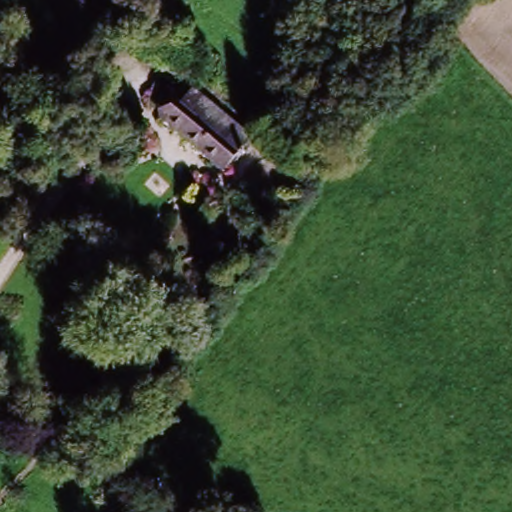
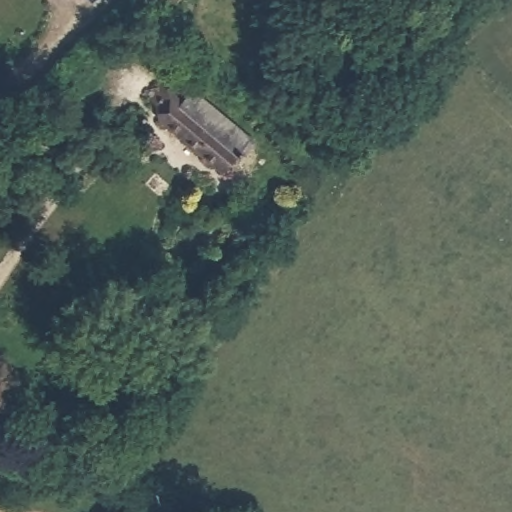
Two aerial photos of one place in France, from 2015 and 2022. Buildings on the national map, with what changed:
unchanged [(91,0),(99,0),(95,4),(91,0)]
unchanged [(174,5),(158,21),(138,1),(139,0),(170,0),(174,5)]
unchanged [(263,154),(250,168),(243,162),(218,137),(228,127),(217,116),(208,124),(189,104),(201,92),(263,154)]
unchanged [(208,124),(217,116),(228,127),(218,137),(243,162),(224,180),(169,123),(177,116),(166,104),(178,93),(189,104),(208,124)]

